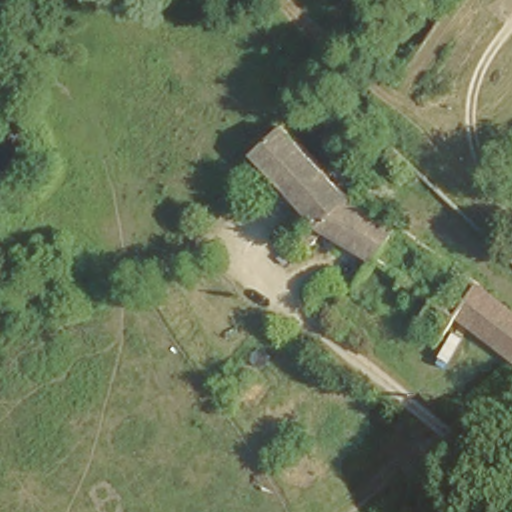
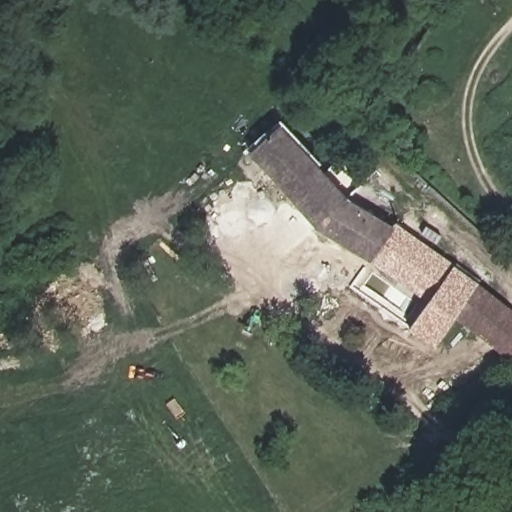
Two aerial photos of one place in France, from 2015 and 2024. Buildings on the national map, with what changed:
unchanged [(302,145),(325,167),(335,156),(346,164),(365,179),(355,191),(329,227),(302,207),(291,193),(266,166),(251,151),(279,124),(282,127),(297,141),(302,145)]
unchanged [(329,227),(355,191),(391,219),(365,256),(329,227)]
new [(394,225),(396,223),(455,264),(483,286),(481,289),(460,316),(436,348),(408,330),(427,304),(363,257),(365,256),(389,222),(394,225)]
unchanged [(512,354),(460,316),(481,289),(512,313),(512,354)]

